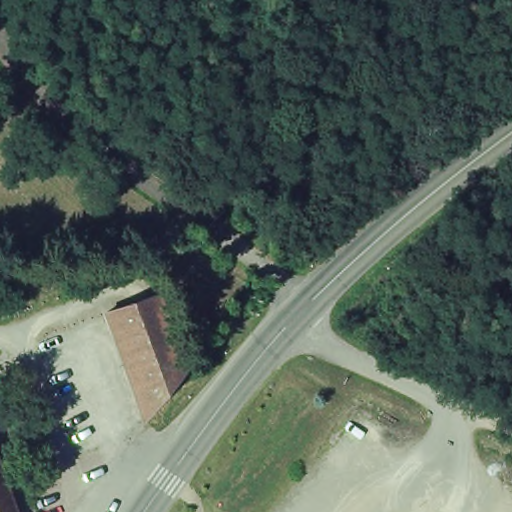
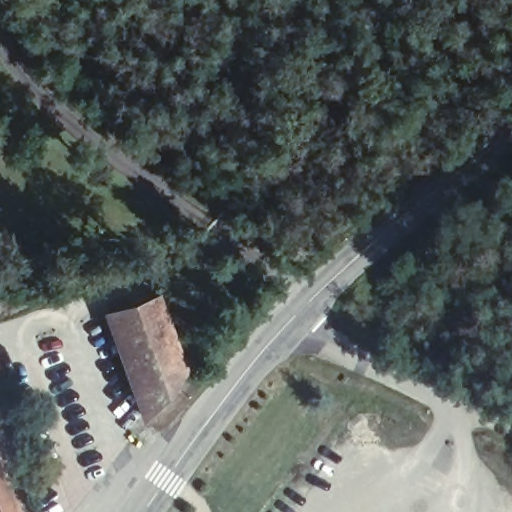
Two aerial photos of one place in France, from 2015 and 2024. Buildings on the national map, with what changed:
unchanged [(154,299),(182,374),(143,418),(108,313),(154,299)]
unchanged [(11,512),(0,512),(0,481),(11,512)]

